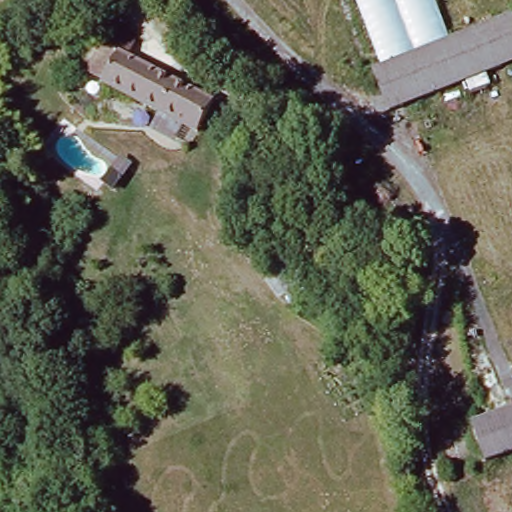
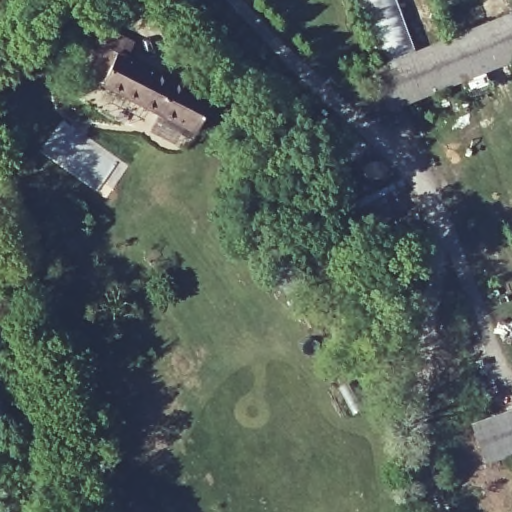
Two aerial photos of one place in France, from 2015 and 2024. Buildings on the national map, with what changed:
unchanged [(437,41),(409,52),(393,59),(387,62),(357,0),(439,0),(453,35),(437,41)]
unchanged [(387,62),(393,59),(409,52),(437,41),(453,35),(482,23),(512,11),(512,63),(508,65),(482,77),(459,85),(429,97),(396,110),(374,67),(387,62)]
unchanged [(141,41),(135,52),(180,74),(165,105),(111,78),(123,54),(107,46),(115,28),(141,41)]
unchanged [(218,92),(203,123),(165,105),(180,74),(218,92)]
unchanged [(512,408),(512,449),(494,456),(481,420),(484,418),(512,408)]

